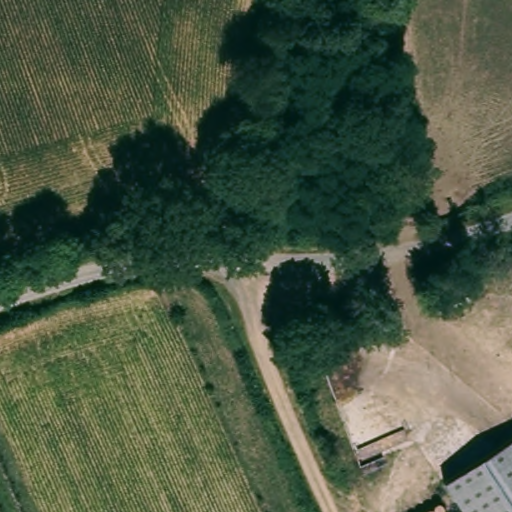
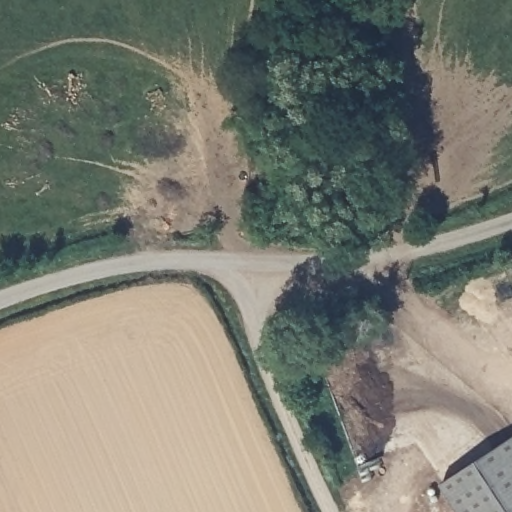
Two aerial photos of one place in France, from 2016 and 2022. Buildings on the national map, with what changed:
unchanged [(512,440),(512,512),(463,512),(445,485),(512,440)]

